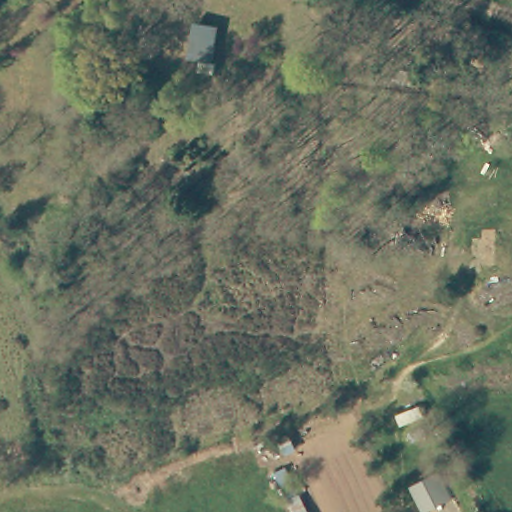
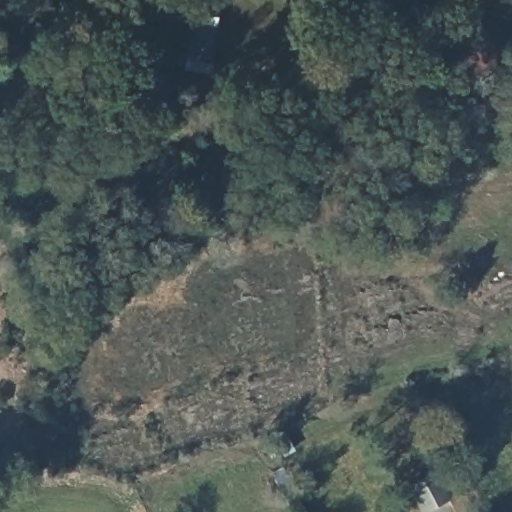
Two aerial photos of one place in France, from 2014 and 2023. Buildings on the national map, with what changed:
unchanged [(445,509),(438,512),(411,512),(403,498),(430,482),(445,509)]

